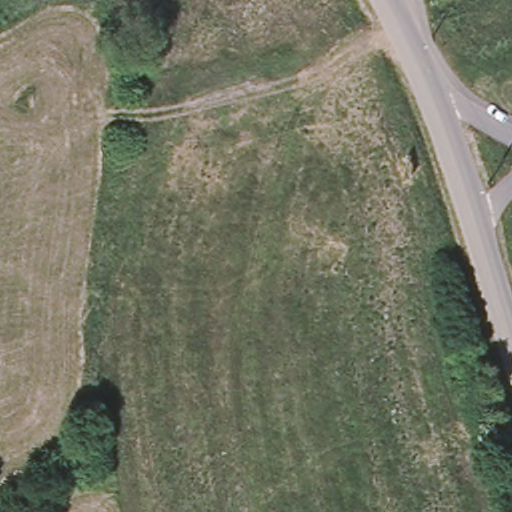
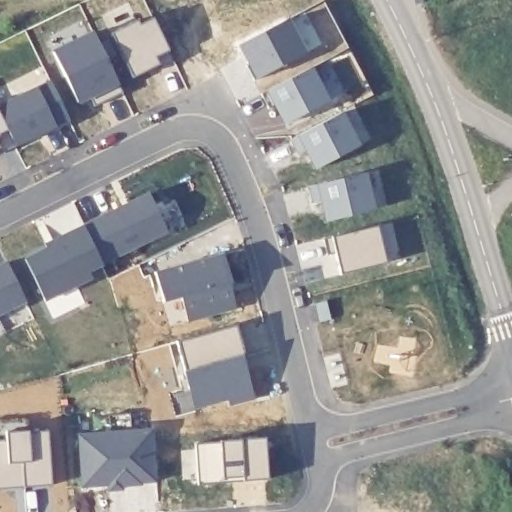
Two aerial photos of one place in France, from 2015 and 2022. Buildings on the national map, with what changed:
new [(111,33),(136,20),(140,27),(154,19),(173,63),(157,72),(155,66),(133,78),(111,33)]
new [(290,22),(308,54),(257,79),(243,47),(290,22)]
new [(53,52),(94,34),(122,92),(95,106),(90,96),(77,103),(53,52)]
new [(315,70),(332,105),(287,127),(270,91),(315,70)]
new [(51,82),(71,124),(18,147),(0,107),(0,105),(51,82)]
new [(307,151),(298,156),(289,138),(298,133),(344,109),(361,144),(314,167),(307,151)]
new [(15,145),(1,152),(0,151),(0,115),(15,145)]
new [(320,200),(312,202),(308,187),(317,184),(367,172),(376,209),(325,221),(320,200)]
new [(83,225),(149,194),(167,230),(102,262),(83,225)]
new [(376,224),(385,262),(339,273),(334,252),(326,254),(322,238),(376,224)]
new [(102,263),(88,270),(91,277),(45,299),(25,258),(54,244),(52,240),(83,225),(102,263)]
new [(159,272),(221,255),(235,307),(189,319),(183,296),(167,300),(159,272)]
new [(8,260),(29,298),(0,312),(0,264),(8,260)]
new [(238,327),(256,398),(230,405),(229,401),(196,411),(187,372),(192,371),(184,341),(238,327)]
new [(0,488),(0,438),(27,437),(27,429),(28,429),(28,430),(47,429),(51,484),(23,486),(1,488),(0,488)]
new [(6,438),(5,431),(27,429),(27,437),(6,438)]
new [(79,435),(153,430),(156,482),(82,487),(79,435)]
new [(267,441),(269,480),(200,484),(197,445),(267,441)]

